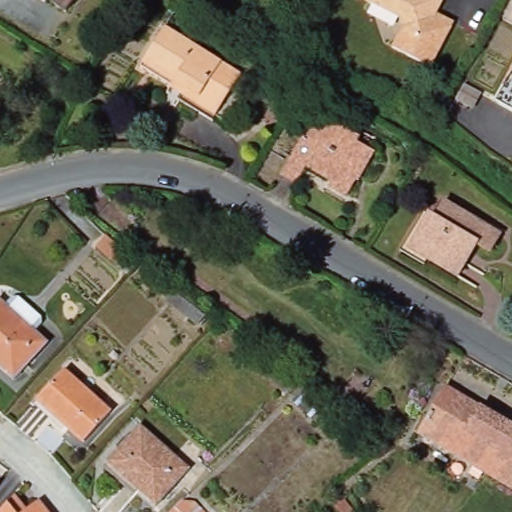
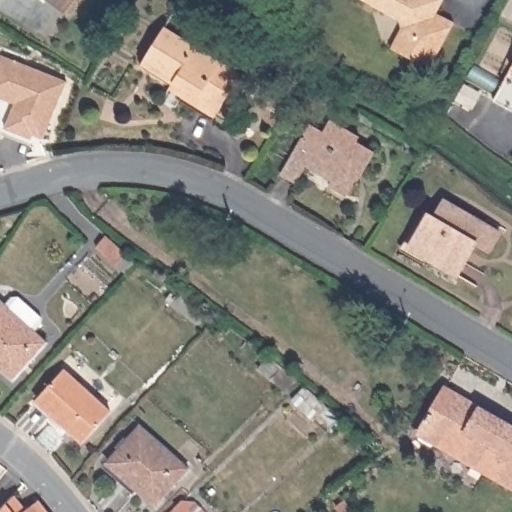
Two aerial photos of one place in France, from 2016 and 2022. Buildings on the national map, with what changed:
unchanged [(48,0),(75,0),(64,13),(48,0)]
unchanged [(438,11),(435,16),(453,26),(428,70),(389,49),(401,30),(401,27),(398,16),(394,6),(384,10),(367,0),(430,0),(432,9),(438,11)]
unchanged [(173,91),(176,86),(144,67),(169,27),(247,73),(219,119),(173,91)]
new [(33,135),(31,140),(4,129),(14,104),(0,98),(0,55),(65,81),(44,140),(33,135)]
unchanged [(501,88),(512,68),(512,94),(501,88)]
unchanged [(461,105),(469,90),(484,99),(476,114),(461,105)]
unchanged [(337,120),(366,136),(363,141),(381,152),(366,175),(364,174),(351,195),(333,185),(335,180),(309,165),(300,181),(284,172),(314,123),(330,132),(337,120)]
unchanged [(436,217),(447,201),(502,235),(491,252),(480,246),(461,276),(412,246),(432,215),(436,217)]
unchanged [(122,263),(102,246),(111,235),(131,252),(122,263)]
unchanged [(10,300),(18,300),(39,319),(40,326),(33,333),(45,344),(13,380),(0,368),(0,303),(4,306),(10,300)]
unchanged [(114,413),(86,442),(41,402),(69,372),(114,413)]
unchanged [(512,425),(512,486),(424,435),(451,390),(512,425)]
unchanged [(192,473),(158,508),(113,465),(146,430),(192,473)]
unchanged [(11,505),(17,499),(18,498),(29,511),(40,501),(41,502),(49,512),(5,512),(11,505)]
unchanged [(186,498),(197,499),(209,512),(172,512),(186,498)]

